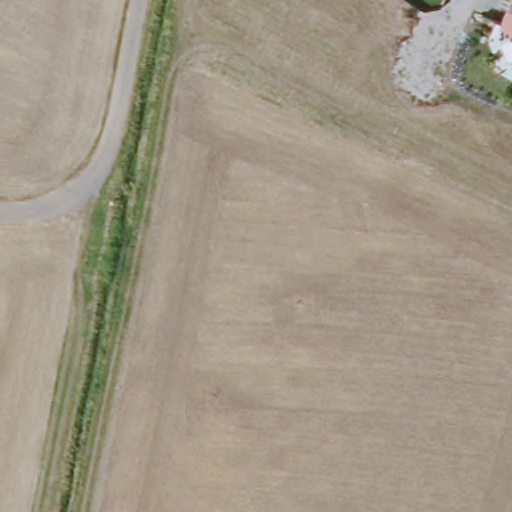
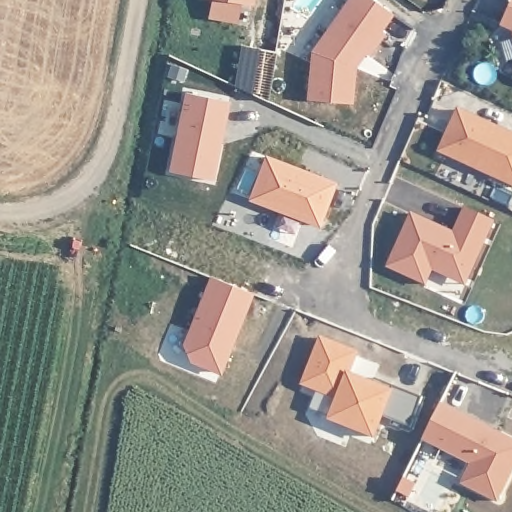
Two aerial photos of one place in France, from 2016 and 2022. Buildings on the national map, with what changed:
new [(232,0),(256,0),(255,4),(232,0)]
new [(307,98),(311,48),(346,0),(374,0),(392,13),(381,30),(385,33),(370,57),(364,53),(355,65),(352,102),(307,98)]
unchanged [(512,7),(512,33),(503,29),(512,7)]
new [(187,94),(230,102),(213,181),(171,173),(187,94)]
new [(458,107),(512,132),(512,186),(437,153),(458,107)]
new [(268,156),(337,182),(320,226),(251,200),(268,156)]
new [(426,285),(389,267),(414,213),(458,233),(468,209),(495,221),(470,274),(466,284),(433,269),(426,285)]
new [(212,278),(253,294),(223,374),(191,362),(185,348),(212,278)]
new [(359,354),(350,375),(373,384),(375,379),(394,386),(423,397),(412,427),(383,416),(375,437),(331,420),(340,399),(305,385),(323,339),(359,354)]
new [(512,439),(512,474),(498,501),(464,484),(474,464),(425,440),(442,404),(512,439)]
new [(405,479),(417,484),(410,498),(398,492),(405,479)]

